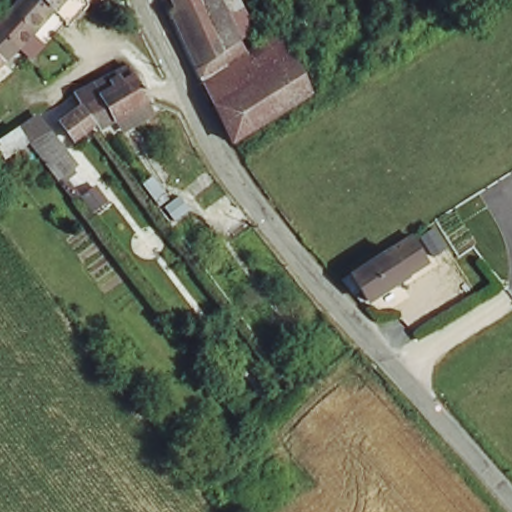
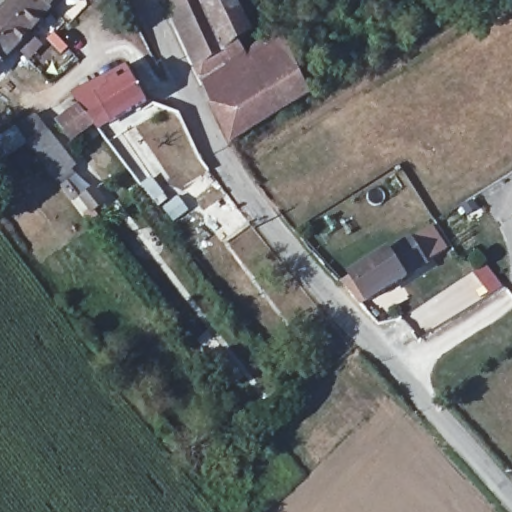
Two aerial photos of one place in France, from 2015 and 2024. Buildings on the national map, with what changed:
unchanged [(8,16),(22,0),(63,0),(54,11),(31,37),(17,52),(1,67),(0,68),(0,24),(8,16)]
unchanged [(233,46),(221,65),(219,65),(199,80),(180,42),(167,12),(161,0),(229,0),(241,22),(228,29),(233,46)]
unchanged [(279,41),(304,95),(302,96),(233,140),(214,107),(245,82),(237,66),(279,41)]
unchanged [(237,66),(245,82),(214,107),(199,80),(219,65),(221,65),(237,66)]
unchanged [(76,139),(64,122),(85,107),(78,94),(94,86),(127,69),(131,67),(151,101),(117,120),(112,112),(95,121),(98,125),(76,139)]
unchanged [(60,181),(32,142),(7,159),(0,150),(0,142),(22,128),(39,118),(49,132),(76,169),(60,181)]
unchanged [(350,279),(392,252),(416,237),(431,262),(408,276),(366,302),(350,279)]

